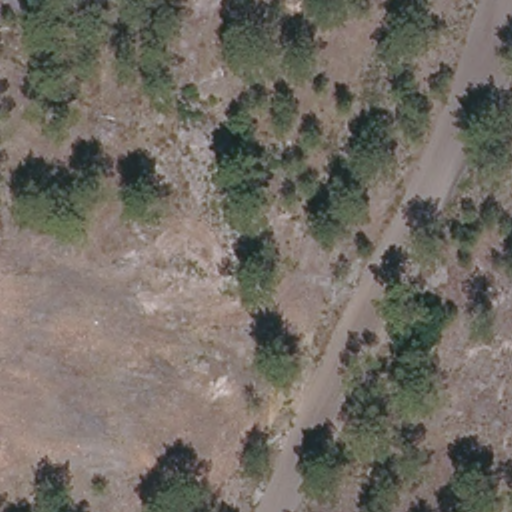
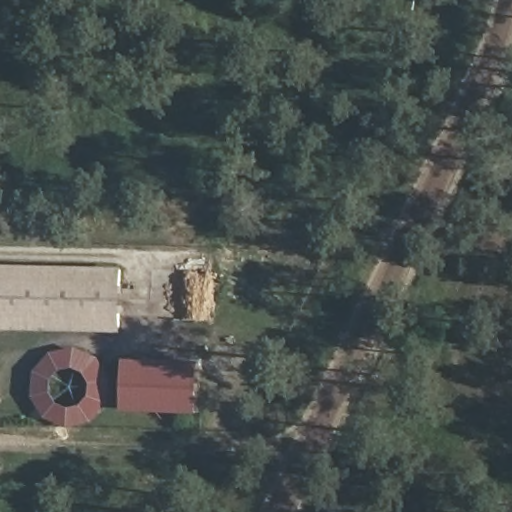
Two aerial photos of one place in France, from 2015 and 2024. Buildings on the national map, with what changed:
new [(0,263),(125,266),(123,331),(0,328),(0,263)]
new [(124,409),(126,357),(202,360),(200,412),(124,409)]

